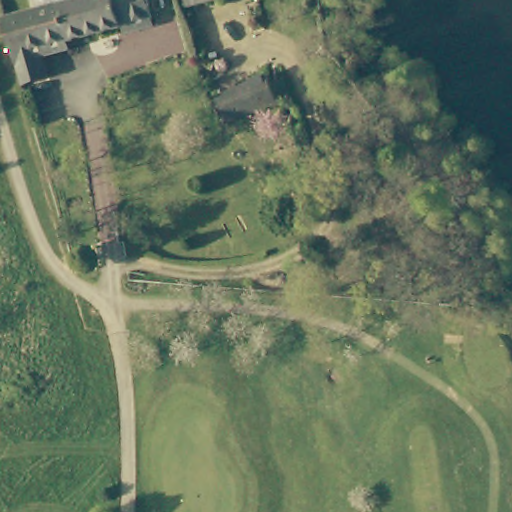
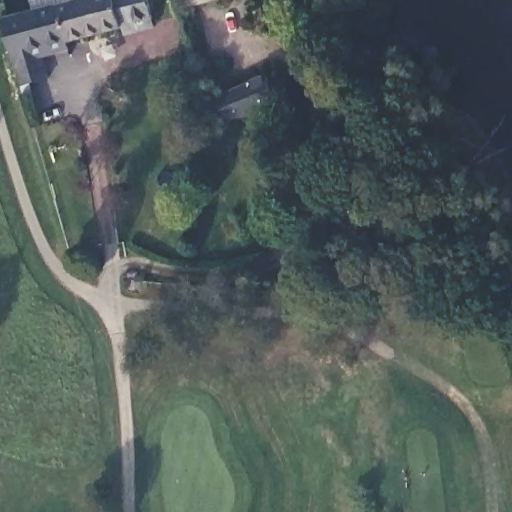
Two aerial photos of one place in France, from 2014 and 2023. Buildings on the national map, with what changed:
unchanged [(29,11),(69,0),(71,0),(79,36),(13,54),(4,17),(29,11)]
unchanged [(26,0),(69,0),(29,11),(26,0)]
unchanged [(147,17),(79,36),(71,0),(142,0),(147,17)]
unchanged [(183,6),(181,0),(205,0),(183,6)]
unchanged [(225,125),(214,101),(265,77),(269,84),(278,80),(287,98),(282,100),(225,125)]

